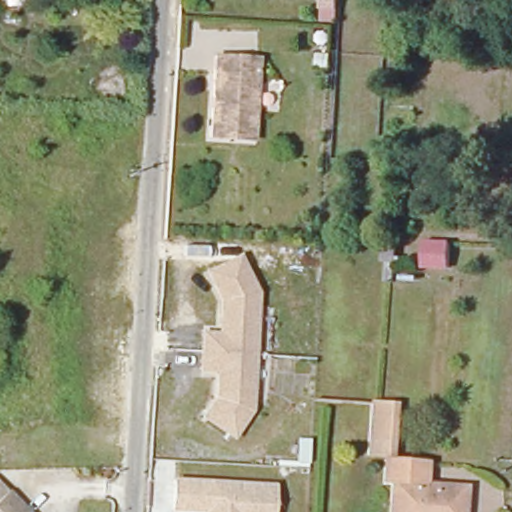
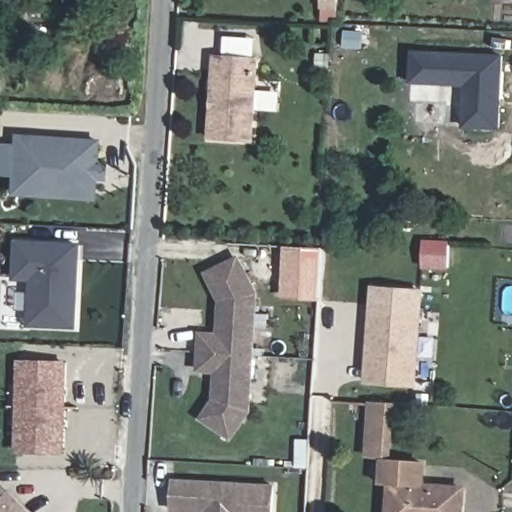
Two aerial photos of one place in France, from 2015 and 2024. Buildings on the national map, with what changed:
unchanged [(323,17),(323,0),(339,0),(338,17),(323,17)]
unchanged [(253,56),(248,138),(205,135),(207,106),(211,104),(211,96),(208,93),(211,53),(253,56)]
new [(414,53),(502,56),(500,128),(465,126),(466,84),(413,82),(414,53)]
new [(99,179),(97,200),(12,194),(16,132),(101,138),(99,160),(109,160),(108,180),(99,179)]
unchanged [(447,271),(421,270),(421,241),(447,241),(447,271)]
new [(73,326),(29,323),(32,277),(15,277),(17,242),(77,245),(75,293),(75,302),(73,326)]
demolished [(394,243),(391,283),(378,282),(379,242),(394,243)]
new [(282,299),(285,245),(322,247),(319,300),(282,299)]
unchanged [(259,294),(253,413),(233,440),(202,418),(215,400),(216,373),(201,373),(203,333),(219,333),(222,302),(207,272),(243,256),(259,294)]
new [(420,291),(413,384),(366,380),(373,287),(420,291)]
new [(18,430),(23,430),(24,383),(19,382),(19,362),(64,362),(63,451),(18,451),(18,430)]
unchanged [(379,454),(361,453),(365,401),(384,401),(379,454)]
unchanged [(374,480),(376,460),(416,462),(415,484),(456,486),(455,512),(383,512),(384,481),(374,480)]
unchanged [(273,484),(272,512),(205,512),(205,510),(172,509),(172,480),(273,484)]
unchanged [(25,512),(0,512),(0,497),(6,491),(25,512)]

